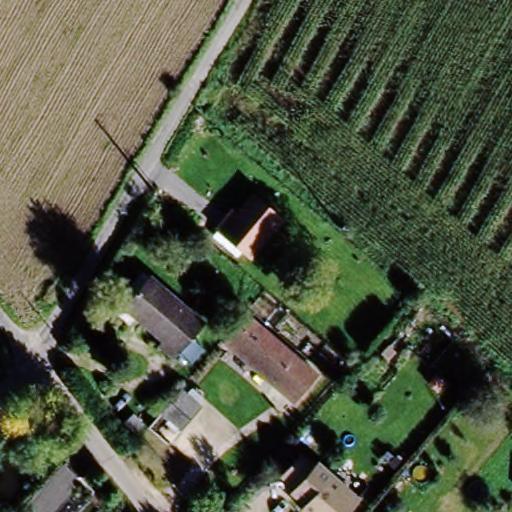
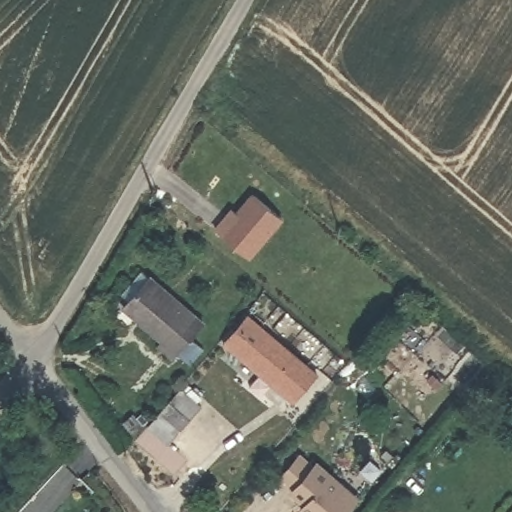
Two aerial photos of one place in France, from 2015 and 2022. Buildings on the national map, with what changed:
unchanged [(274,223),(244,265),(209,239),(218,226),(223,217),(228,222),(243,201),(274,223)]
unchanged [(171,348),(161,339),(164,335),(124,300),(148,271),(199,315),(185,331),(198,342),(186,355),(174,344),(171,348)]
unchanged [(226,343),(229,339),(251,315),(256,319),(319,377),(296,401),(293,406),(226,343)]
unchanged [(175,431),(156,413),(176,389),(196,407),(175,431)]
unchanged [(302,504),(276,482),(304,455),(356,502),(346,512),(297,512),(302,504)]

